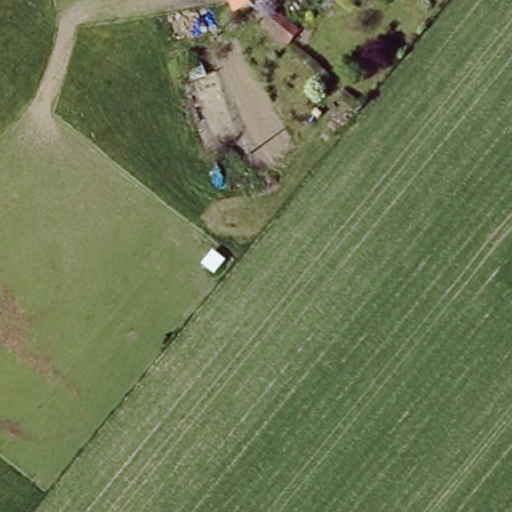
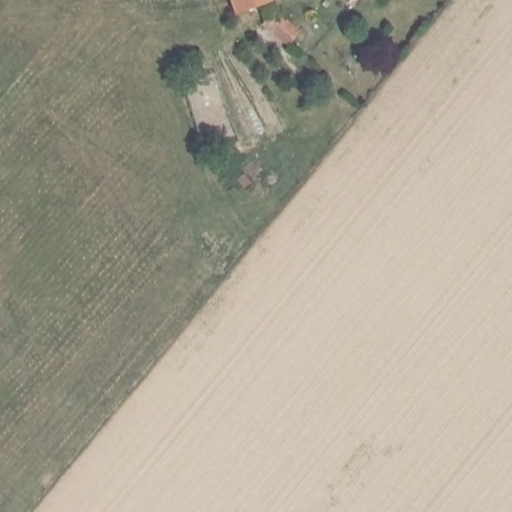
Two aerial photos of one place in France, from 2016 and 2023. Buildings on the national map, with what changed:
unchanged [(234,17),(229,0),(269,0),(270,6),(234,17)]
unchanged [(297,36),(290,47),(260,24),(267,13),(297,36)]

